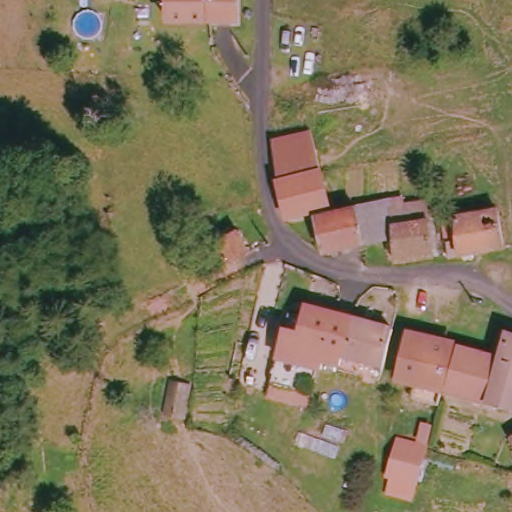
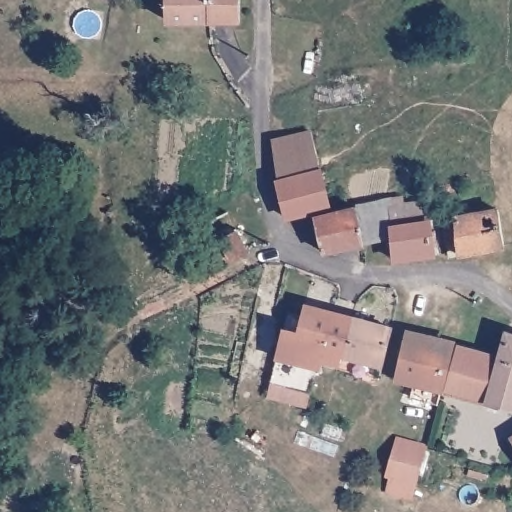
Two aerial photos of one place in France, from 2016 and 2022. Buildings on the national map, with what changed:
unchanged [(165,0),(233,0),(233,25),(188,26),(165,27),(165,0)]
unchanged [(389,237),(362,244),(318,253),(309,219),(285,222),(274,180),(316,170),(327,213),(355,208),(397,195),(400,204),(426,199),(425,219),(428,261),(390,266),(389,237)]
unchanged [(449,219),(491,210),(497,253),(453,258),(449,219)]
unchanged [(232,253),(222,258),(220,256),(217,252),(217,249),(223,245),(222,238),(238,230),(250,253),(234,262),(232,253)]
unchanged [(275,361),(270,360),(278,327),(294,332),(300,305),(387,325),(378,371),(340,360),(339,366),(318,362),(317,370),(300,410),(263,400),(275,361)]
unchanged [(489,406),(476,402),(445,393),(453,348),(498,358),(500,333),(512,335),(512,412),(489,406)]
unchanged [(444,345),(436,390),(396,380),(402,337),(444,345)]
unchanged [(510,434),(512,432),(512,439),(510,434)]
unchanged [(392,436),(423,444),(413,483),(381,478),(392,436)]

